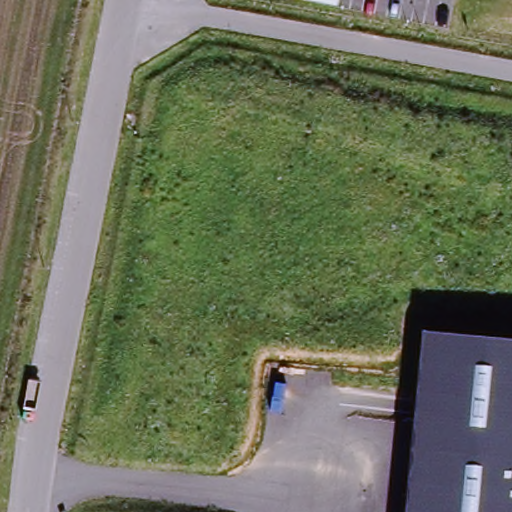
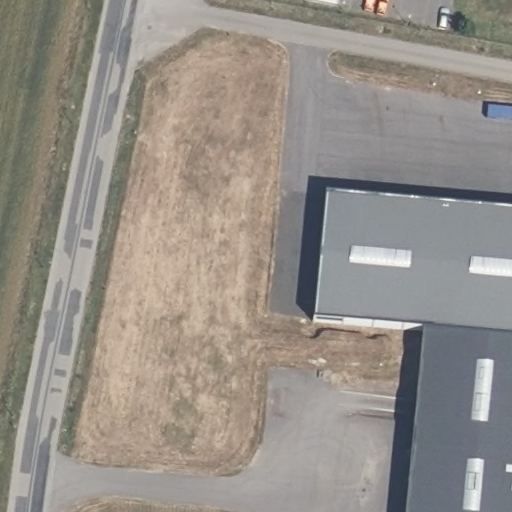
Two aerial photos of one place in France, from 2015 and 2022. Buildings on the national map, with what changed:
new [(421,328),(314,318),(326,192),(512,211),(512,341),(422,332),(421,328)]
unchanged [(512,341),(512,512),(405,512),(422,332),(512,341)]

